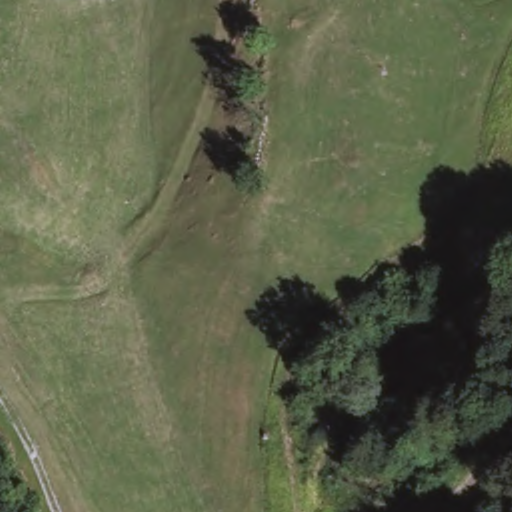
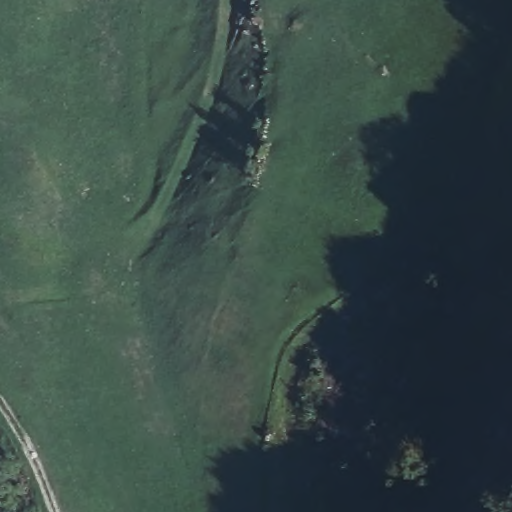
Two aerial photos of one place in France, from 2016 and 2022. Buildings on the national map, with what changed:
[]

